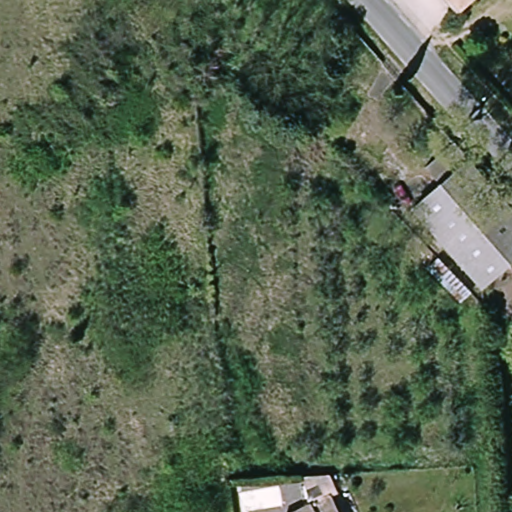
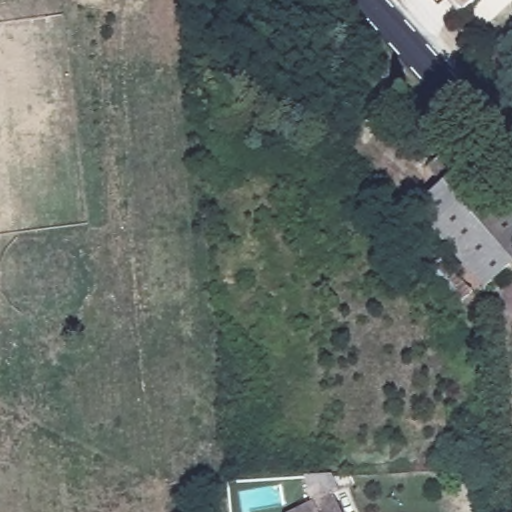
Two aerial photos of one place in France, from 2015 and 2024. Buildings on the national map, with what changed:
unchanged [(463,16),(448,0),(481,0),(463,16)]
unchanged [(484,281),(420,215),(473,166),(492,187),(512,209),(512,276),(493,293),(484,281)]
unchanged [(314,502),(311,477),(332,475),(332,493),(314,502)]
unchanged [(336,493),(345,512),(300,512),(327,498),(336,493)]

